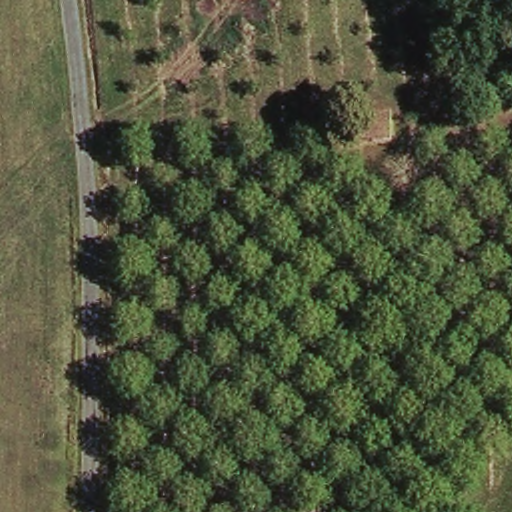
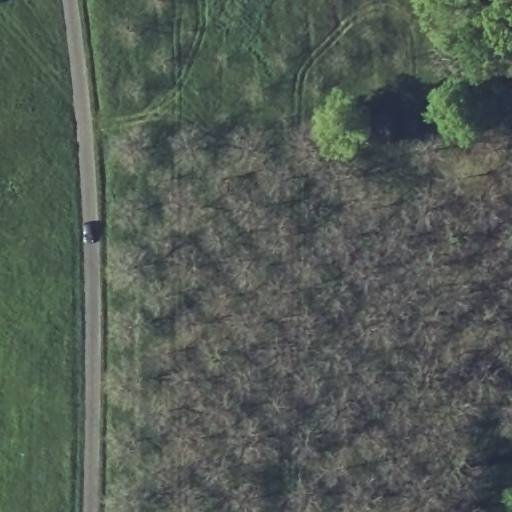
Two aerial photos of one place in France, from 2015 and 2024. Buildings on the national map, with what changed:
unchanged [(406,116),(405,135),(374,135),(374,115),(406,116)]

